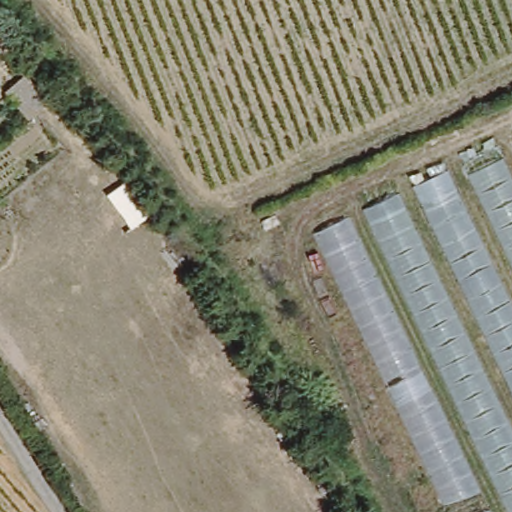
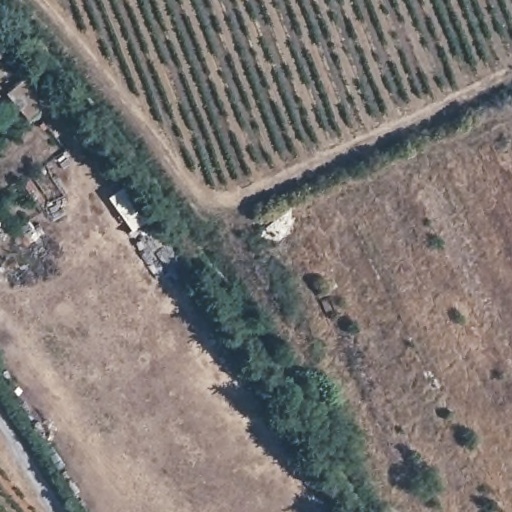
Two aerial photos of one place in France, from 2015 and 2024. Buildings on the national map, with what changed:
unchanged [(0,49),(0,43),(3,46),(0,49)]
unchanged [(11,89),(30,74),(50,100),(32,115),(11,89)]
unchanged [(0,81),(0,76),(2,79),(0,81)]
demolished [(442,512),(308,231),(495,144),(512,180),(512,512),(442,512)]

